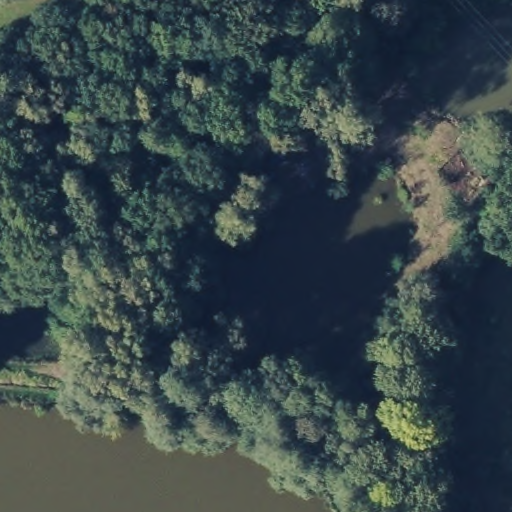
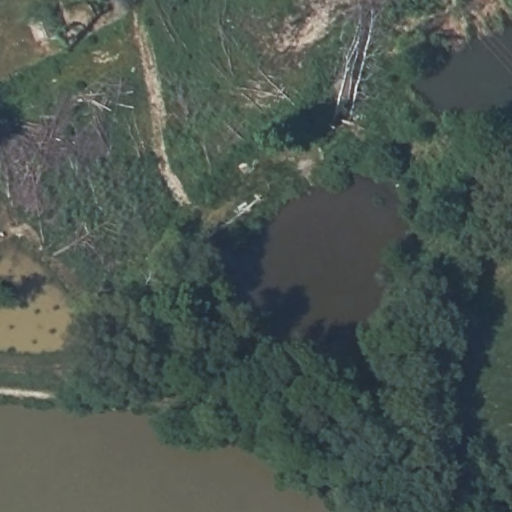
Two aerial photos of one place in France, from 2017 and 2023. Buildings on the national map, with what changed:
unchanged [(318,127),(338,147),(310,164),(294,143),(318,127)]

